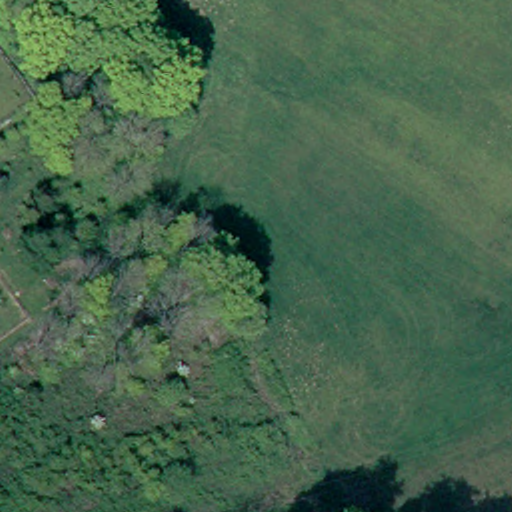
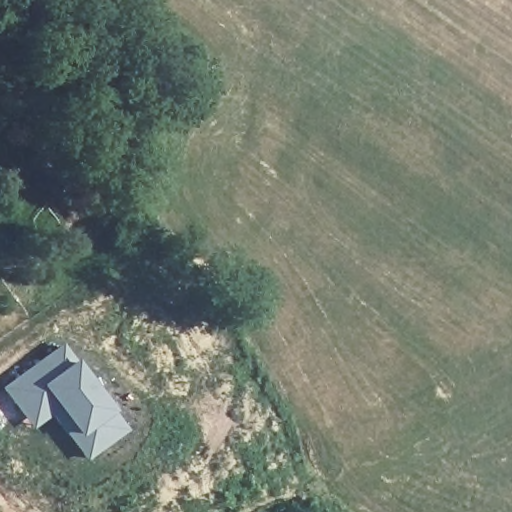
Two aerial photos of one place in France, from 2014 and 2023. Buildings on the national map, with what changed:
new [(83,459),(50,414),(29,428),(0,389),(0,388),(61,343),(73,360),(111,412),(124,429),(83,459)]

